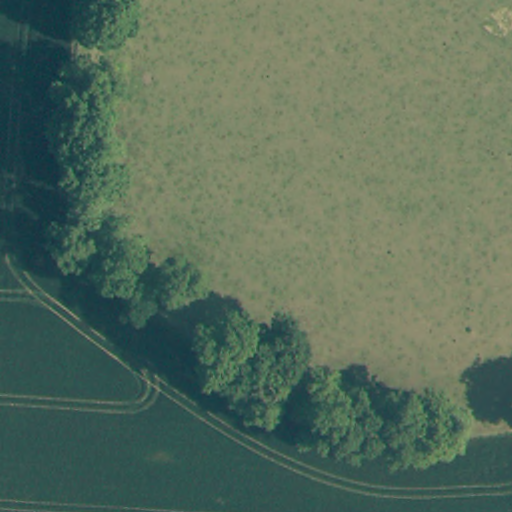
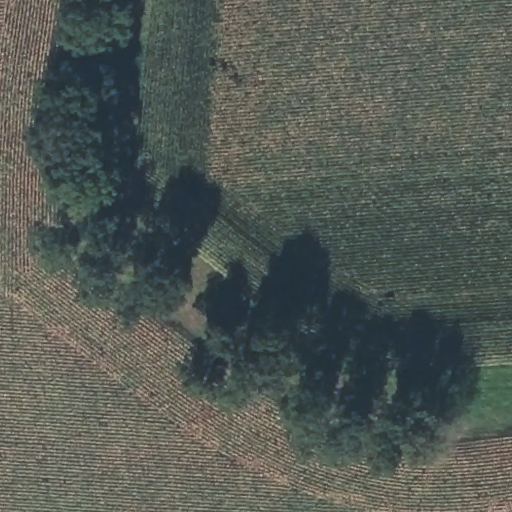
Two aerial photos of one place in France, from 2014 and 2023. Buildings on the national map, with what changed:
[]

